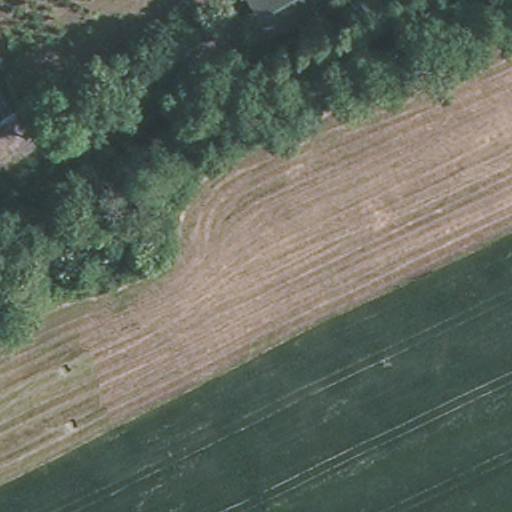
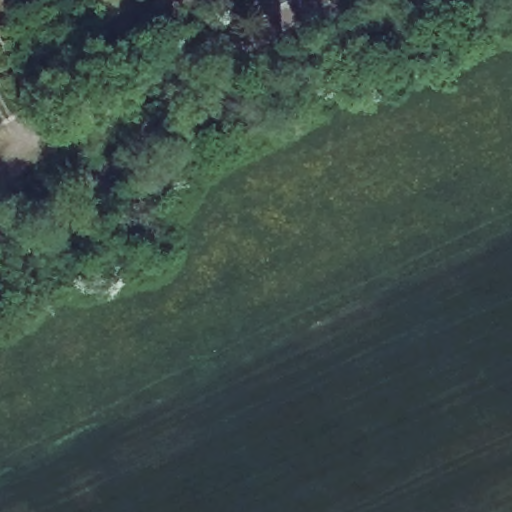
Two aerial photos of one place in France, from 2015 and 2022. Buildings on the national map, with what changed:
unchanged [(155,238),(165,257),(155,263),(145,245),(155,238)]

